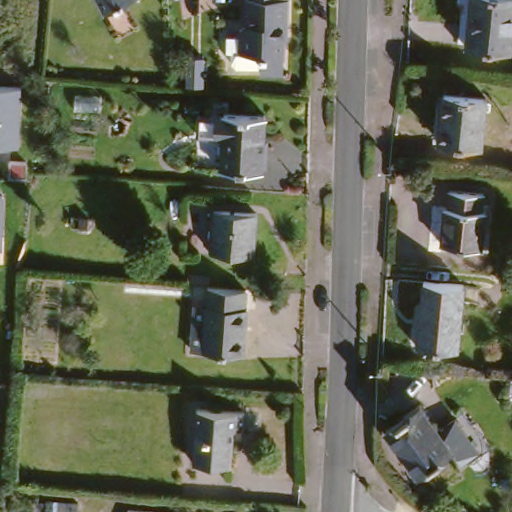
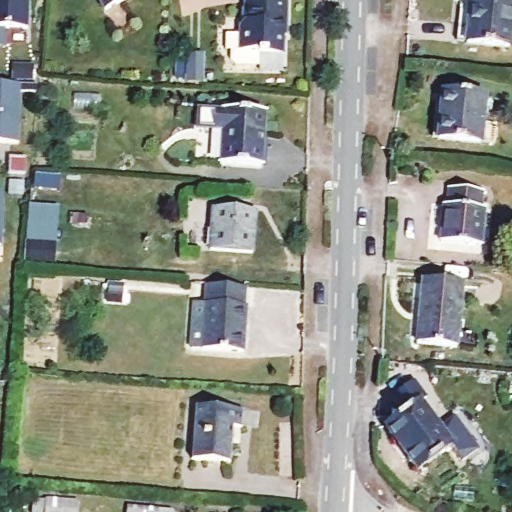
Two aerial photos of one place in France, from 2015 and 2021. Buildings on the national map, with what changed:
new [(25,28),(0,27),(0,0),(26,0),(25,28)]
unchanged [(109,11),(102,0),(128,0),(109,11)]
unchanged [(280,55),(237,51),(245,0),(286,0),(280,55)]
unchanged [(472,50),(473,46),(461,44),(465,0),(512,0),(512,54),(472,50)]
unchanged [(0,83),(17,85),(17,144),(0,143),(0,83)]
unchanged [(486,101),(483,149),(440,145),(443,97),(486,101)]
unchanged [(219,161),(197,160),(201,109),(227,111),(222,165),(219,161)]
unchanged [(227,111),(265,115),(260,169),(222,165),(227,111)]
unchanged [(0,192),(1,192),(0,246),(0,192)]
unchanged [(441,211),(446,211),(448,194),(480,197),(478,212),(482,212),(478,251),(437,247),(441,211)]
unchanged [(256,216),(252,258),(210,255),(214,212),(256,216)]
unchanged [(200,302),(210,303),(212,287),(250,291),(249,307),(251,307),(248,352),(241,352),(206,350),(197,349),(200,302)]
unchanged [(462,291),(457,352),(451,352),(415,348),(421,287),(462,291)]
unchanged [(451,450),(416,475),(383,428),(420,403),(451,450)]
unchanged [(242,413),(240,433),(231,432),(229,466),(191,462),(196,410),(242,413)]
unchanged [(77,512),(48,512),(48,507),(77,508),(77,512)]

